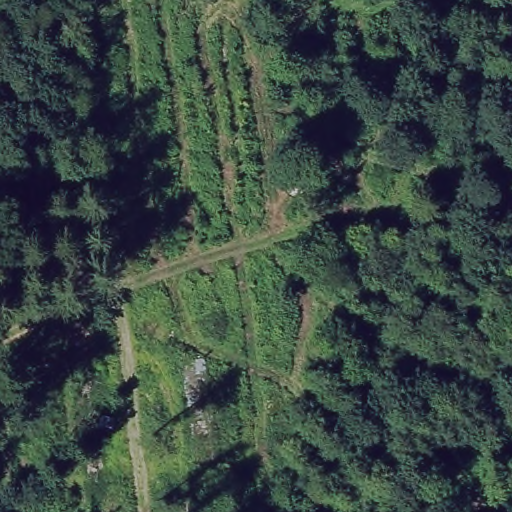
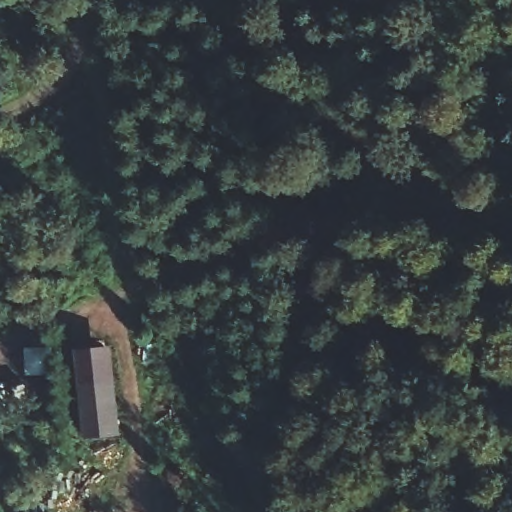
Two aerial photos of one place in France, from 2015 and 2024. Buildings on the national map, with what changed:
new [(112,344),(120,434),(85,438),(75,348),(112,344)]

